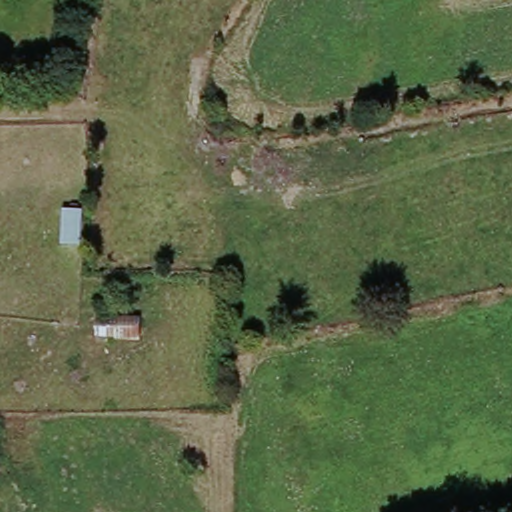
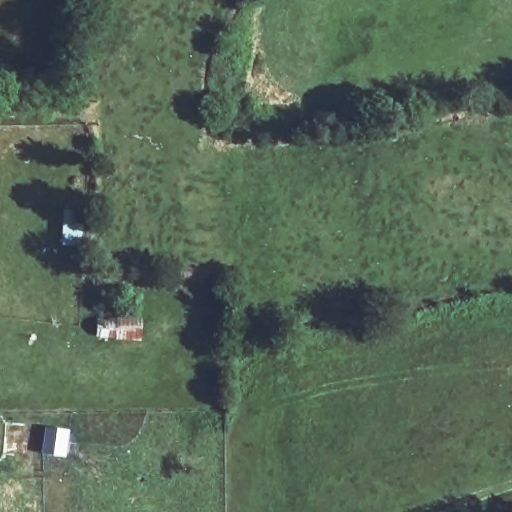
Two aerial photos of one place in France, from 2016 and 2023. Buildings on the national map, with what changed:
unchanged [(149,319),(148,340),(102,339),(101,319),(149,319)]

